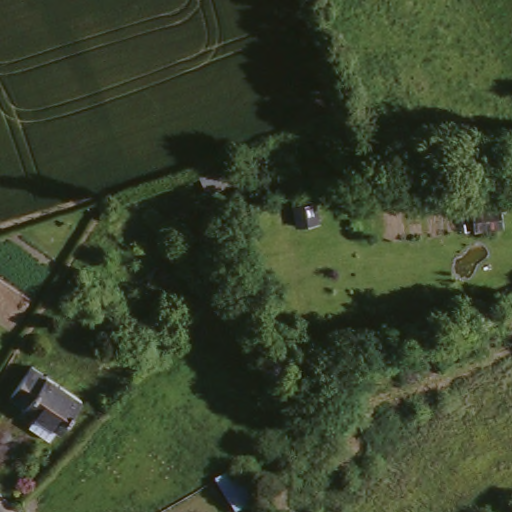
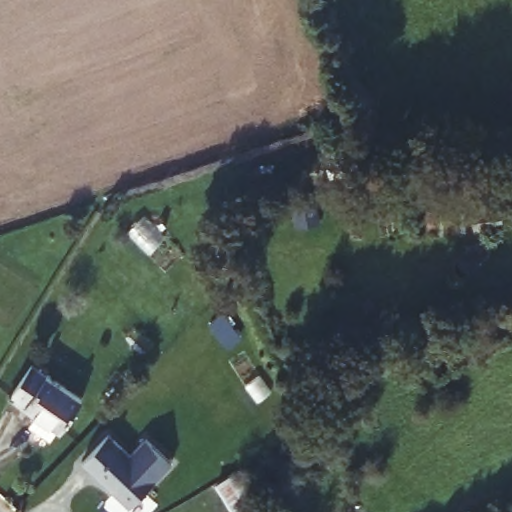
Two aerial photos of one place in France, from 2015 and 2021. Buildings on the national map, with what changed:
unchanged [(243,177),(208,192),(197,172),(235,157),(243,177)]
unchanged [(500,211),(502,234),(451,240),(447,218),(500,211)]
unchanged [(47,431),(40,440),(24,428),(30,420),(1,399),(23,367),(73,402),(51,434),(47,431)]
new [(172,462),(131,507),(81,462),(107,434),(131,453),(145,437),(172,462)]
unchanged [(253,512),(228,512),(213,490),(233,477),(254,511),(253,512)]
demolished [(178,492),(190,512),(143,512),(177,492),(178,492)]

